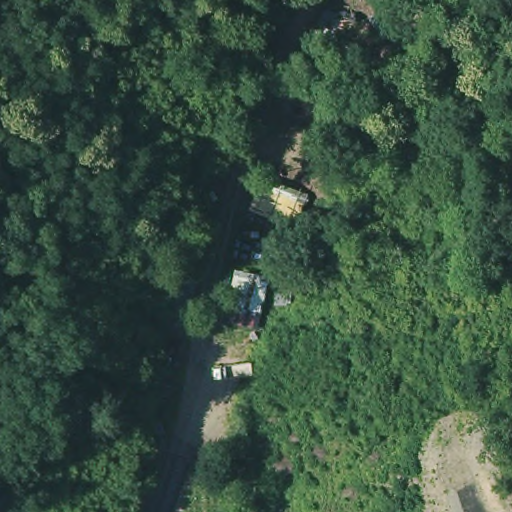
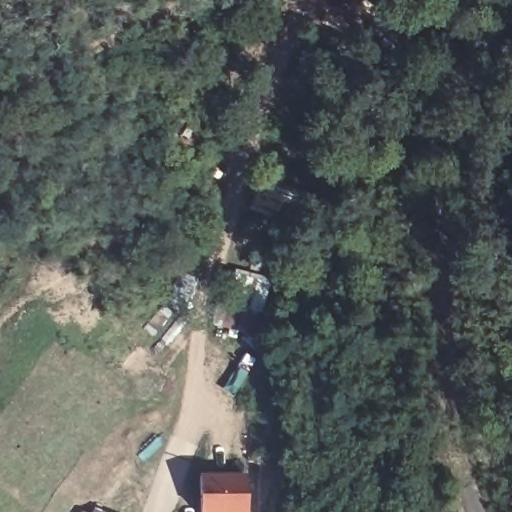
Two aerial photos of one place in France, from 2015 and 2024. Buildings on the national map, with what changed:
unchanged [(297,228),(247,210),(260,177),(310,195),(297,228)]
unchanged [(257,331),(222,324),(235,269),(267,278),(257,331)]
new [(249,512),(200,512),(198,478),(247,475),(249,512)]

